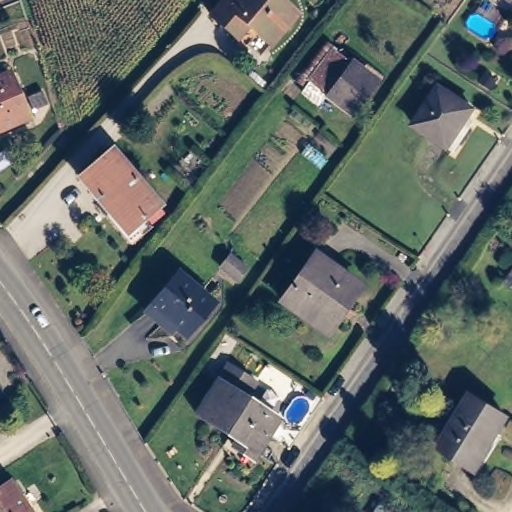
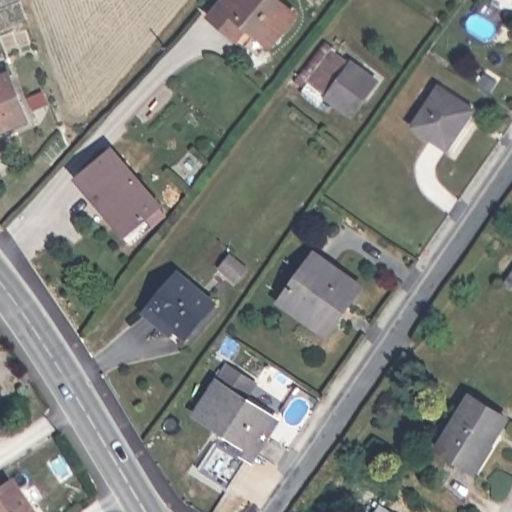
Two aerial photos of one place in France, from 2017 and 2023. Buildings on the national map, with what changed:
unchanged [(285,0),(302,14),(262,57),(217,17),(232,0),(285,0)]
unchanged [(332,53),(353,70),(330,101),(307,83),(332,53)]
unchanged [(19,71),(36,110),(2,125),(0,121),(0,79),(19,71)]
unchanged [(437,141),(413,125),(439,87),(472,110),(451,141),(446,148),(437,141)]
unchanged [(115,152),(160,204),(128,231),(83,180),(115,152)]
unchanged [(325,334),(287,306),(320,259),(365,291),(350,310),(330,338),(325,334)]
unchanged [(188,270),(220,303),(191,329),(181,320),(172,327),(152,304),(188,270)]
unchanged [(250,388),(239,404),(273,426),(247,466),(228,454),(232,446),(191,420),(223,371),(250,388)]
unchanged [(438,453),(472,400),(497,416),(507,422),(474,476),(467,472),(438,453)]
unchanged [(10,482),(30,512),(0,512),(0,489),(10,482)]

